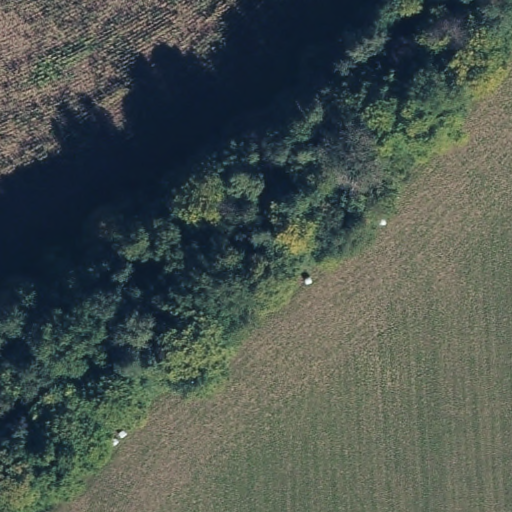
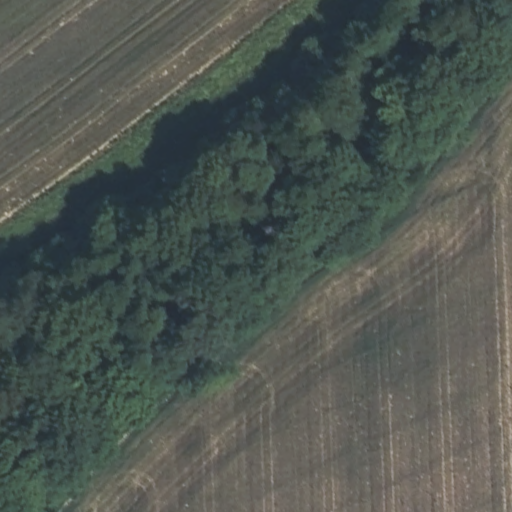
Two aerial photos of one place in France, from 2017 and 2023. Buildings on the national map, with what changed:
[]

